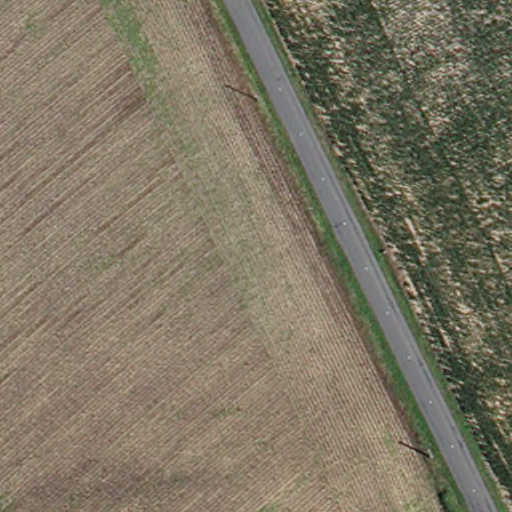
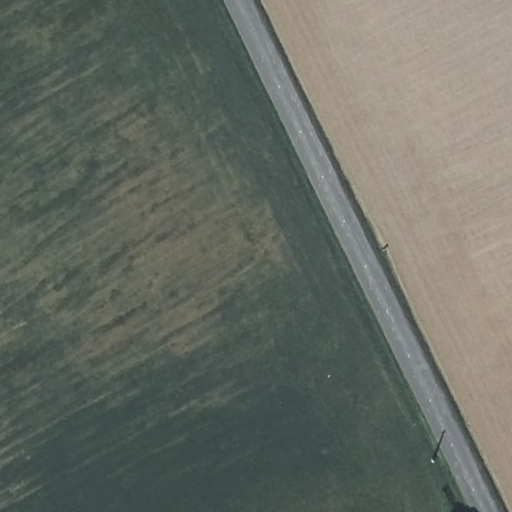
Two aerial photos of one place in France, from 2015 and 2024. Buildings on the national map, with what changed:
[]

